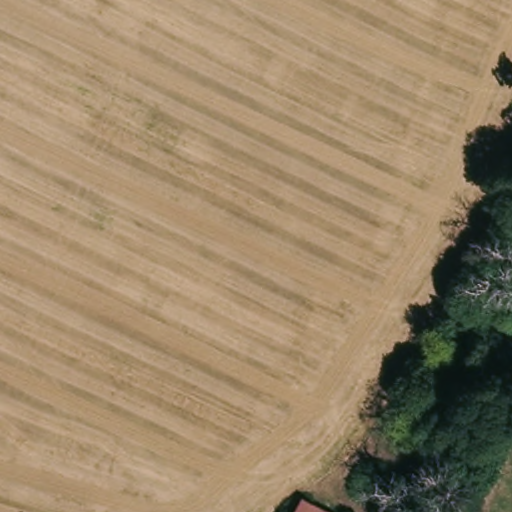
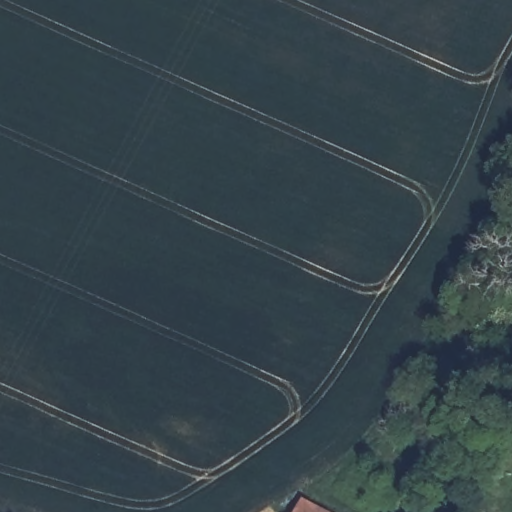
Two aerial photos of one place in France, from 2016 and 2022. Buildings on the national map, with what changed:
unchanged [(302,512),(307,501),(329,512),(302,512)]

